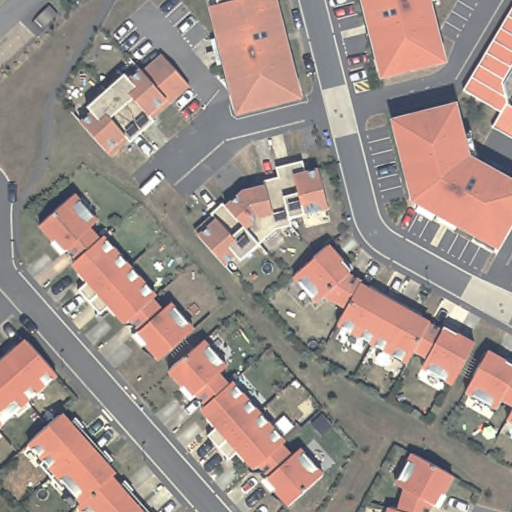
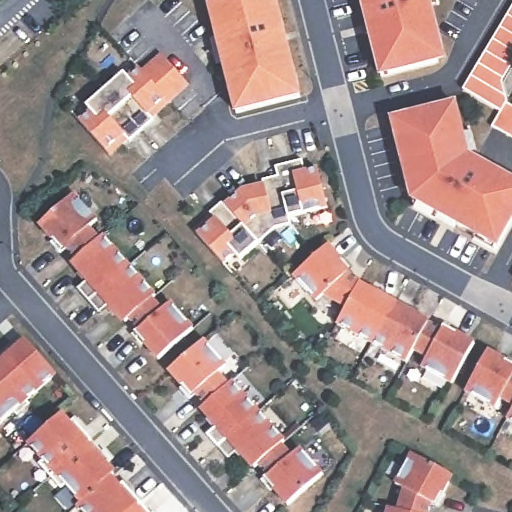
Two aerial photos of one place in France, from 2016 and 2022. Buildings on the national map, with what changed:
unchanged [(231,89),(210,6),(208,0),(275,0),(293,73),(300,97),(297,97),(292,98),(244,110),(236,112),(231,89)]
unchanged [(362,0),(437,0),(437,2),(430,4),(437,34),(431,36),(438,62),(388,75),(382,76),(375,50),(362,0)]
unchanged [(463,89),(512,4),(512,58),(509,63),(512,65),(512,138),(492,127),(501,112),(463,89)]
unchanged [(91,112),(86,107),(124,74),(129,80),(140,70),(142,72),(151,64),(156,70),(167,60),(188,85),(151,118),(154,121),(130,142),(127,139),(109,155),(80,122),(91,112)]
unchanged [(477,235),(457,224),(459,220),(441,210),(439,214),(436,219),(415,207),(412,200),(400,150),(392,120),(400,118),(456,104),(463,134),(471,132),(477,155),(474,160),(512,181),(512,220),(500,242),(495,251),(475,239),(477,235)]
unchanged [(289,212),(291,220),(275,224),(240,255),(235,250),(224,260),(206,240),(195,227),(212,211),(210,209),(222,198),(225,202),(242,187),(248,185),(249,189),(265,185),(262,176),(277,172),(275,162),(302,156),(305,168),(317,165),(327,203),(289,212)]
unchanged [(39,225),(74,194),(97,220),(89,228),(99,239),(80,256),(78,257),(76,259),(66,248),(62,251),(39,225)]
unchanged [(78,289),(89,280),(72,262),(76,259),(78,257),(80,256),(99,239),(102,236),(129,266),(89,301),(78,289)]
unchanged [(322,255),(332,245),(355,269),(352,274),(366,281),(363,285),(359,292),(351,307),(328,295),(322,302),(298,275),(322,255)]
unchanged [(152,299),(136,313),(130,319),(126,322),(110,304),(99,313),(89,301),(129,266),(155,296),(152,299)]
unchanged [(345,317),(351,307),(359,292),(363,285),(381,294),(383,290),(401,300),(381,336),(377,343),(342,324),(345,317)]
unchanged [(136,313),(152,299),(162,310),(170,303),(193,329),(184,337),(159,359),(136,333),(140,330),(130,319),(136,313)]
unchanged [(416,314),(433,323),(418,350),(415,356),(412,363),(377,343),(381,336),(401,300),(418,310),(416,314)]
unchanged [(447,331),(449,327),(479,344),(480,344),(468,363),(457,384),(427,367),(432,357),(418,350),(433,323),(447,331)]
unchanged [(226,366),(218,374),(227,385),(224,388),(206,404),(196,393),(192,397),(169,370),(203,340),(226,366)]
unchanged [(22,396),(0,372),(0,359),(9,351),(12,354),(27,341),(56,374),(26,401),(22,396)]
unchanged [(512,405),(501,398),(496,408),(465,391),(472,379),(487,351),(512,365),(512,405)]
unchanged [(22,396),(26,401),(30,405),(17,416),(14,412),(0,424),(0,372),(22,396)]
unchanged [(207,435),(217,426),(202,408),(206,404),(224,388),(227,385),(232,382),(258,411),(218,447),(207,435)]
unchanged [(512,422),(507,419),(512,410),(512,422)]
unchanged [(281,445),(258,464),(256,467),(255,467),(239,449),(229,459),(218,447),(258,411),(285,441),(281,445)]
unchanged [(40,464),(44,461),(28,443),(48,426),(60,415),(69,424),(73,420),(91,441),(51,477),(40,464)]
unchanged [(66,485),(62,489),(51,477),(91,441),(110,461),(105,465),(113,474),(110,478),(104,483),(84,501),(81,503),(66,485)]
unchanged [(291,456),(299,448),(322,474),(287,505),(265,479),(268,475),(258,464),(281,445),(291,456)]
unchanged [(452,476),(436,506),(432,504),(429,512),(402,512),(398,511),(404,489),(396,484),(412,454),(426,461),(452,476)]
unchanged [(81,503),(84,501),(104,483),(110,478),(118,487),(122,483),(141,504),(132,512),(82,512),(77,506),(81,503)]
unchanged [(148,512),(132,512),(141,504),(148,512)]
unchanged [(398,511),(402,512),(388,512),(389,508),(398,511)]

